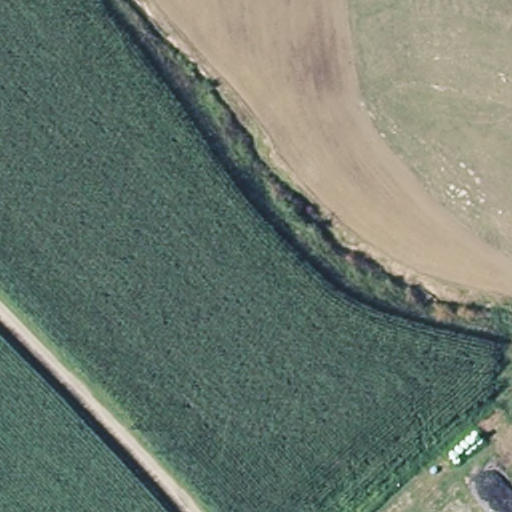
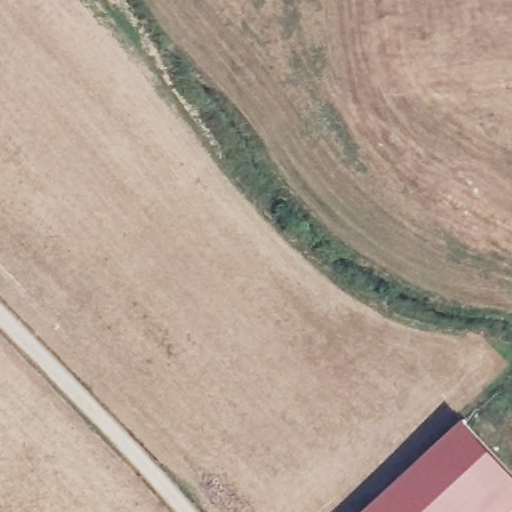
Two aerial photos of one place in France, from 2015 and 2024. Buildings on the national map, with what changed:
new [(464,422),(512,474),(512,512),(366,512),(464,422)]

